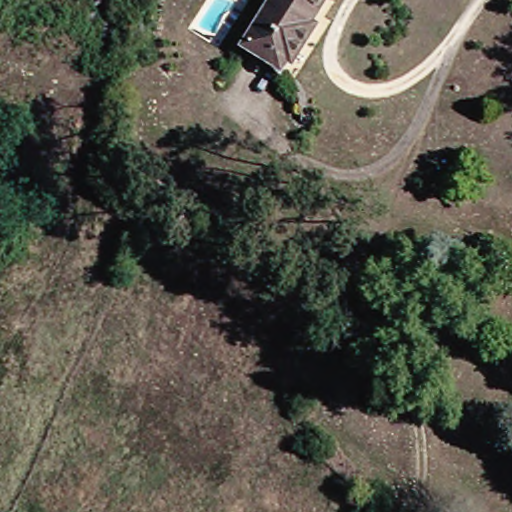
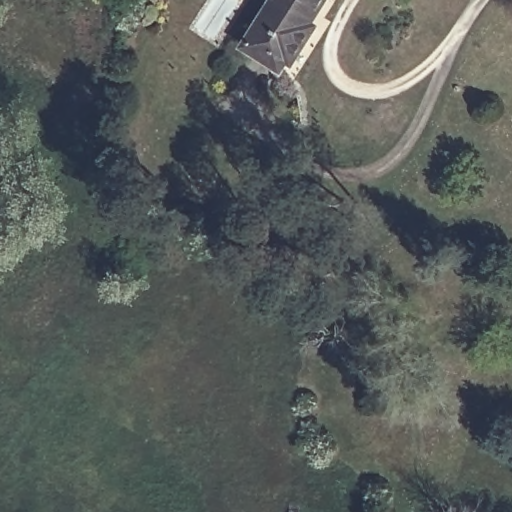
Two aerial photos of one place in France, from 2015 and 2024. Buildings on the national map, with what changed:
unchanged [(321,12),(327,17),(292,70),(249,39),(276,0),(329,0),(321,12)]

